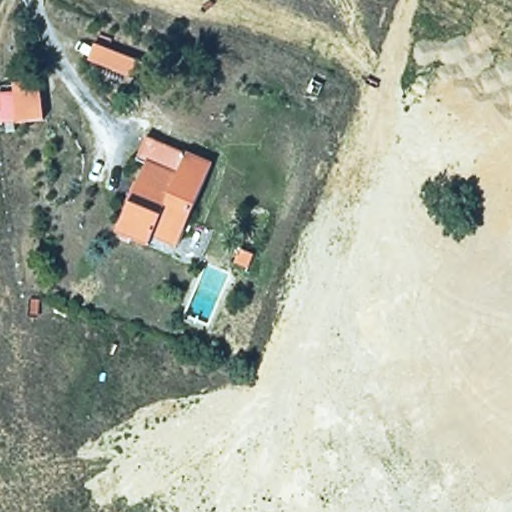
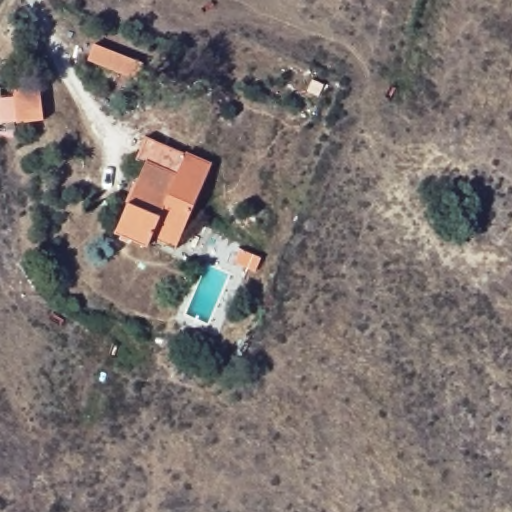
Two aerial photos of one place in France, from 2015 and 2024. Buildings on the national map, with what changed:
unchanged [(93,43),(149,65),(141,84),(86,64),(93,43)]
unchanged [(12,127),(10,84),(42,80),(45,124),(12,127)]
unchanged [(143,159),(152,138),(216,164),(179,246),(158,237),(153,248),(119,234),(149,161),(143,159)]

